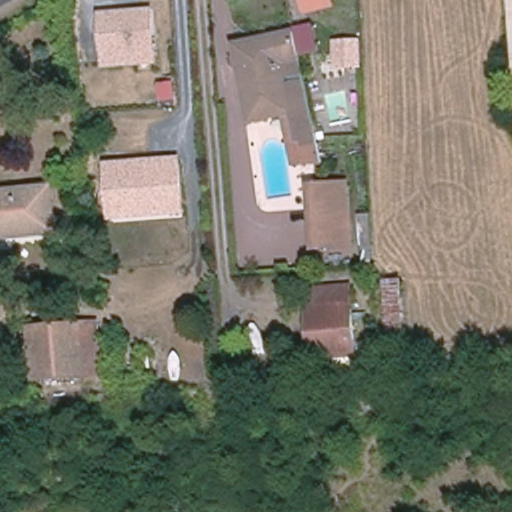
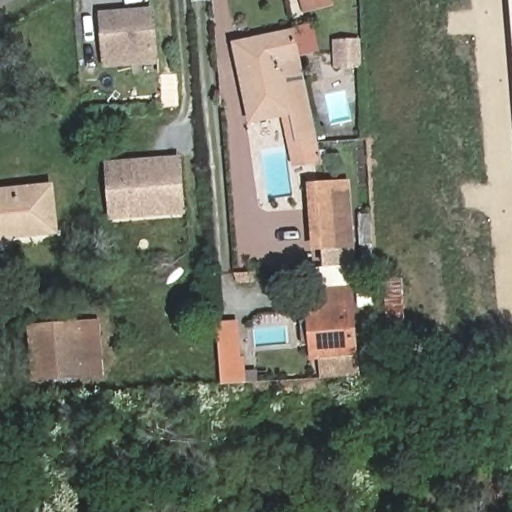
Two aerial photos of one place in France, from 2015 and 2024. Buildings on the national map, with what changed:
unchanged [(303,0),(330,0),(331,4),(306,10),(303,0)]
unchanged [(512,0),(512,32),(509,0),(512,0)]
unchanged [(157,65),(102,68),(97,12),(153,7),(157,65)]
unchanged [(317,143),(300,144),(293,113),(252,121),(240,65),(236,46),(255,42),(294,33),(317,143)]
unchanged [(359,66),(343,67),(341,37),(356,35),(359,66)]
unchanged [(183,214),(107,220),(104,162),(180,156),(183,214)]
unchanged [(352,246),(318,248),(313,186),(347,184),(352,246)]
unchanged [(56,233),(0,239),(0,193),(52,187),(56,233)]
unchanged [(407,362),(392,362),(388,282),(403,282),(407,362)]
unchanged [(310,308),(319,307),(350,306),(354,356),(323,358),(314,358),(310,308)]
new [(240,322),(245,382),(222,385),(218,323),(240,322)]
unchanged [(102,375),(35,379),(30,328),(97,323),(102,375)]

